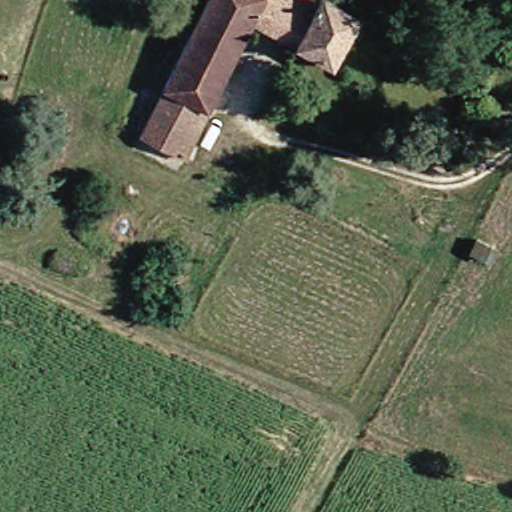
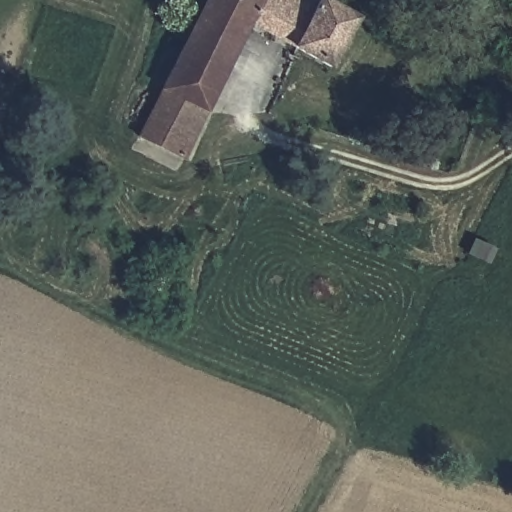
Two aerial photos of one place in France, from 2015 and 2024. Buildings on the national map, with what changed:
unchanged [(199,0),(241,0),(252,5),(242,29),(221,72),(174,52),(199,0)]
unchanged [(252,5),(241,0),(316,0),(352,20),(324,71),(242,29),(252,5)]
unchanged [(154,150),(132,139),(167,66),(174,52),(221,72),(190,139),(179,162),(154,150)]

